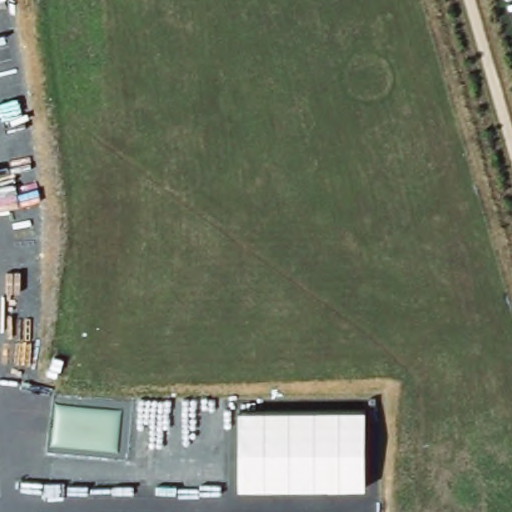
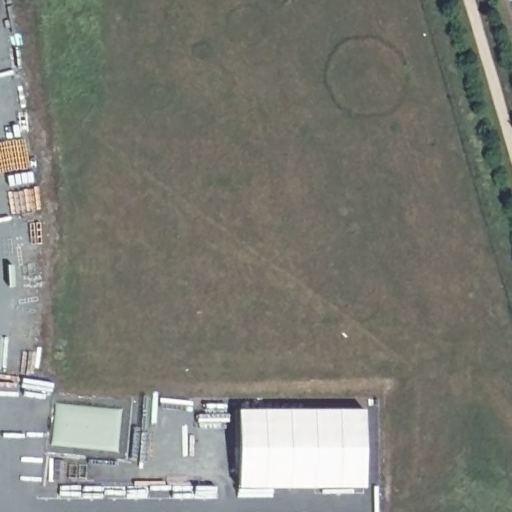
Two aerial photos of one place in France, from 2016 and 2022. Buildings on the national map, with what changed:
unchanged [(238,410),(364,411),(365,487),(237,487),(238,410)]

